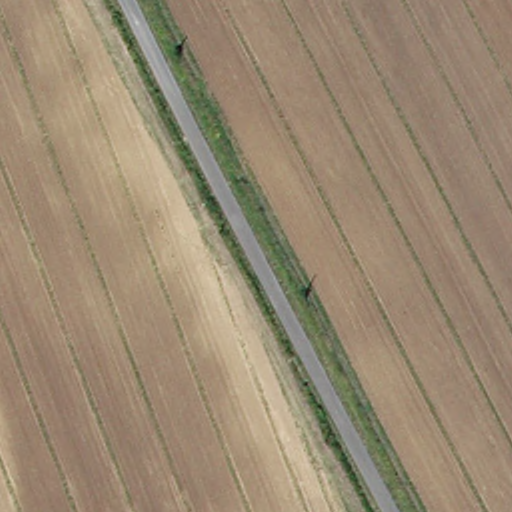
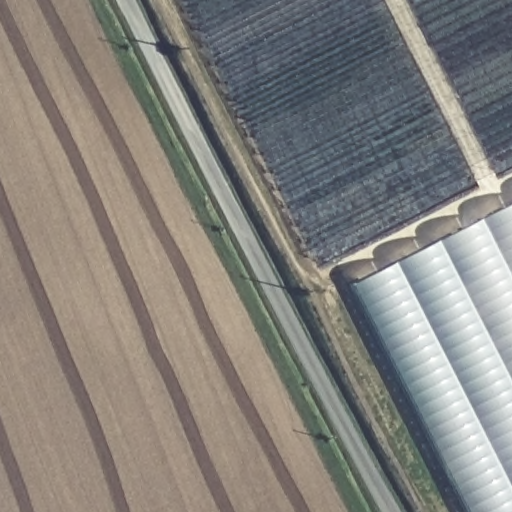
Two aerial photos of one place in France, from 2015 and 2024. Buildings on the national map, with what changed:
new [(512,201),(512,512),(462,512),(350,284),(512,201)]

